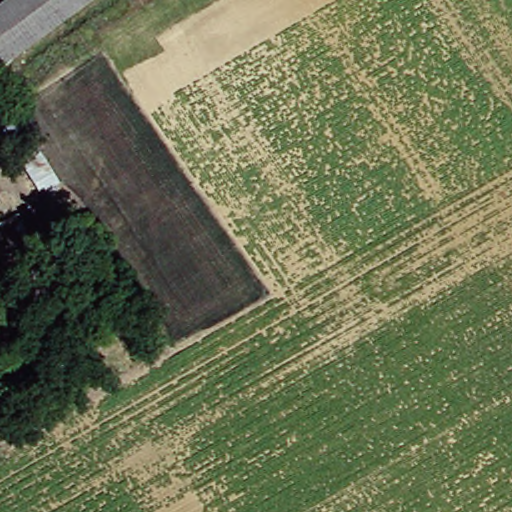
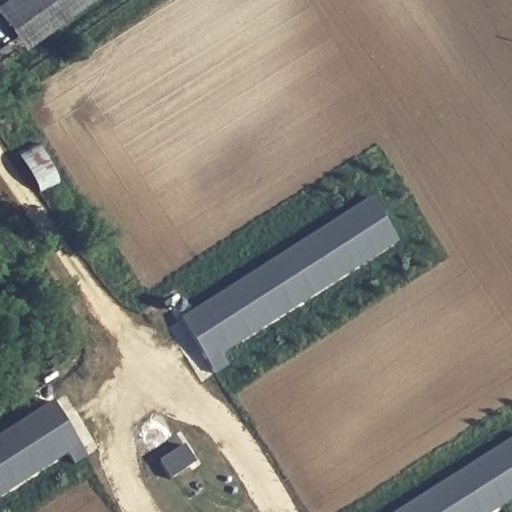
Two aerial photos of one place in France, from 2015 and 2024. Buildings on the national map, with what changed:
unchanged [(0,77),(0,19),(26,0),(103,0),(0,77)]
new [(367,203),(394,246),(215,357),(224,370),(211,378),(177,325),(367,203)]
new [(85,458),(72,466),(65,453),(0,495),(0,438),(52,405),(85,458)]
new [(492,512),(399,512),(512,440),(512,500),(492,512)]
new [(184,446),(195,463),(170,480),(159,463),(184,446)]

